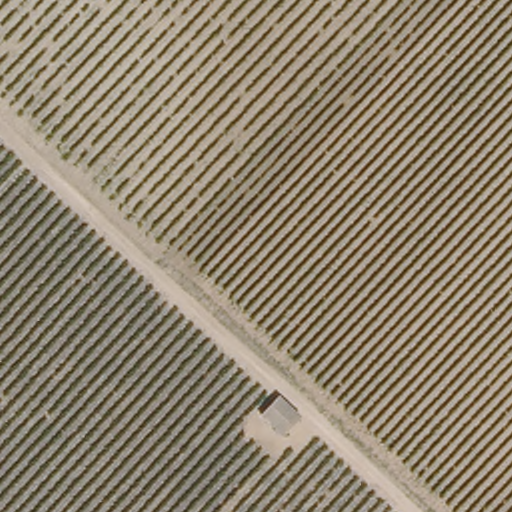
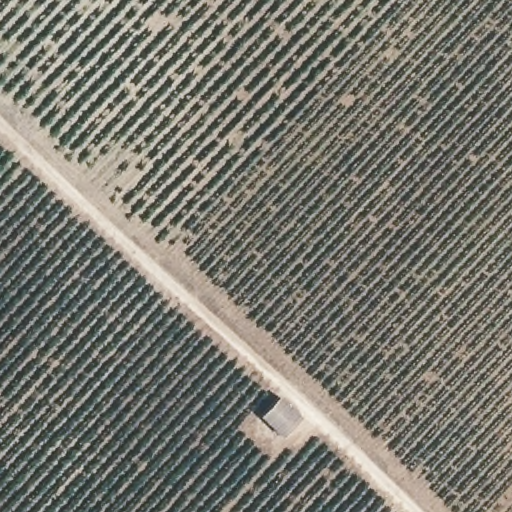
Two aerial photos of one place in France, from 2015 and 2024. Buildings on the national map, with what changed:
unchanged [(301,412),(282,431),(260,410),(279,391),(301,412)]

